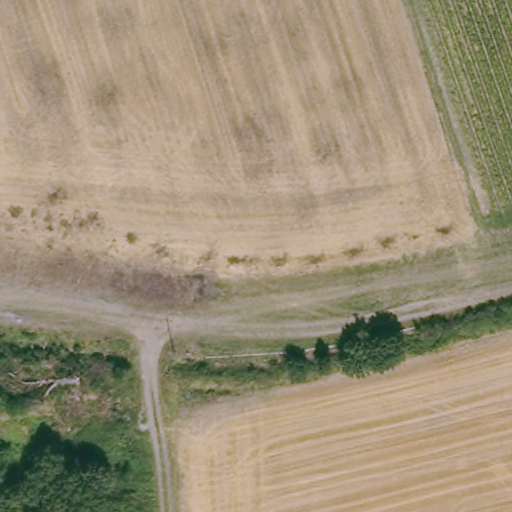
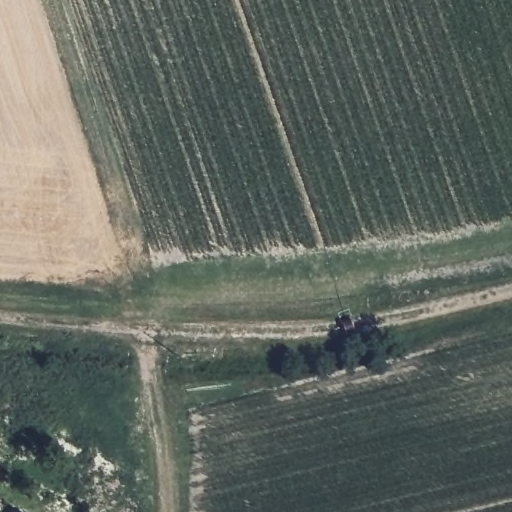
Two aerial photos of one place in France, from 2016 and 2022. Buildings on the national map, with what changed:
[]

